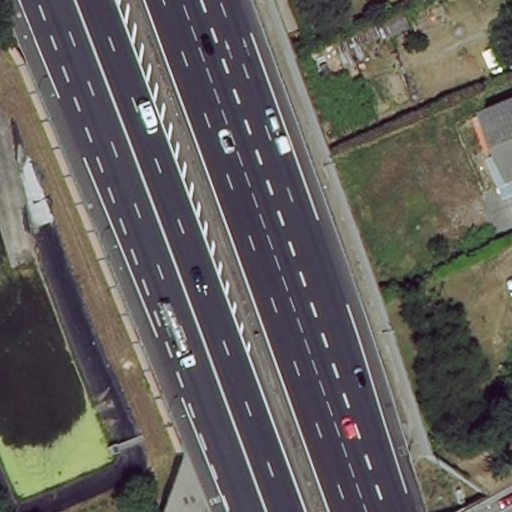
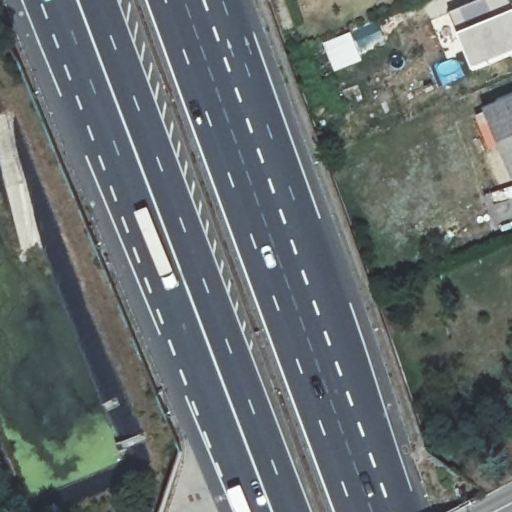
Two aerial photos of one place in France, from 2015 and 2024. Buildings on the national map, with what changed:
new [(512,8),(512,55),(473,72),(459,35),(451,15),(488,0),(509,0),(512,8)]
demolished [(411,11),(418,28),(405,34),(395,37),(391,29),(387,21),(411,11)]
unchanged [(391,29),(385,31),(386,34),(364,43),(369,56),(360,60),(355,47),(345,52),(340,40),(387,21),(391,29)]
unchanged [(512,92),(512,169),(486,102),(512,92)]

